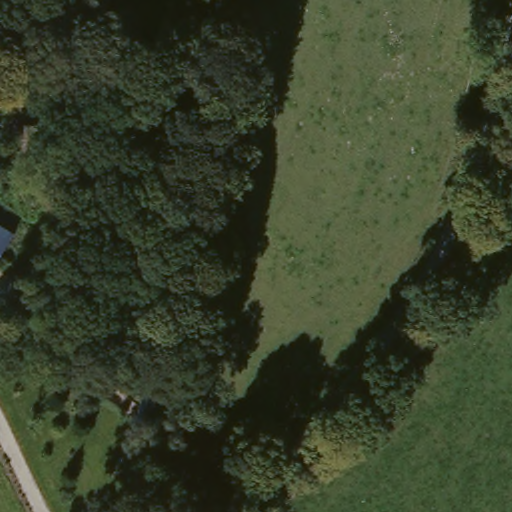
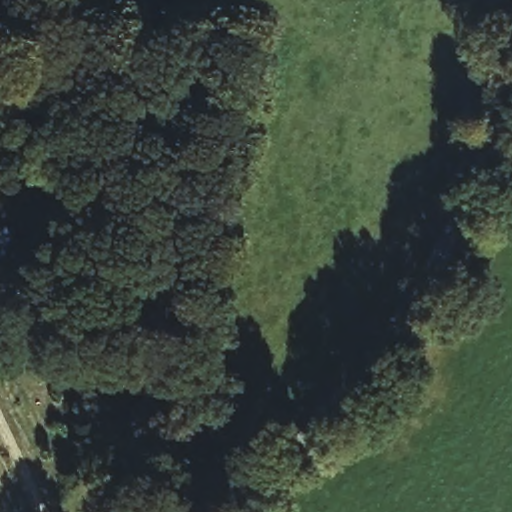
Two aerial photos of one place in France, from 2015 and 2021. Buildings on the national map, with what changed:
unchanged [(0,227),(13,235),(0,256),(0,227)]
unchanged [(178,409),(167,440),(158,437),(146,471),(128,464),(151,399),(178,409)]

